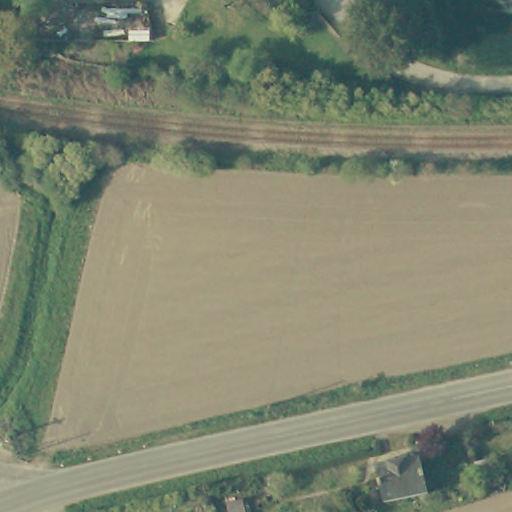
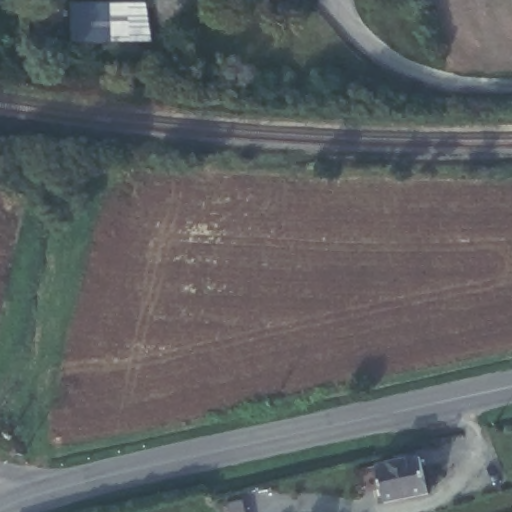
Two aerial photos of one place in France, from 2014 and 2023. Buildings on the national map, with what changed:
new [(153,41),(72,41),(70,4),(147,2),(153,41)]
unchanged [(384,501),(377,467),(422,457),(429,491),(384,501)]

